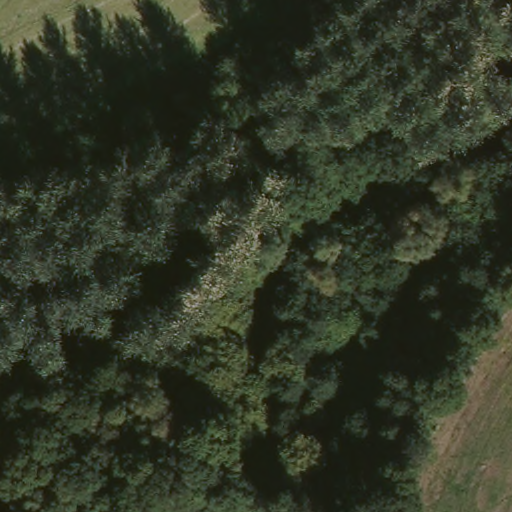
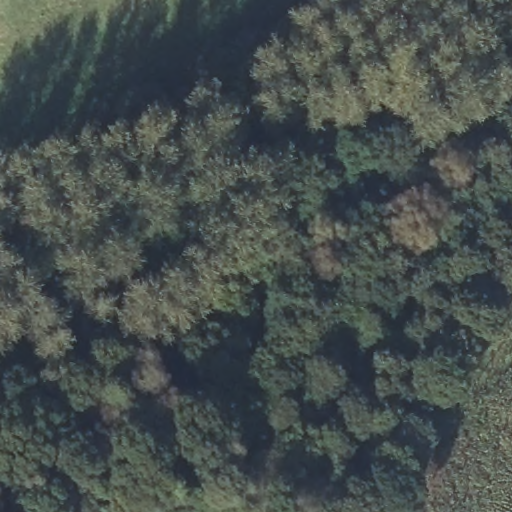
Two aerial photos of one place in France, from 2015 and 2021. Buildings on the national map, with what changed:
[]

